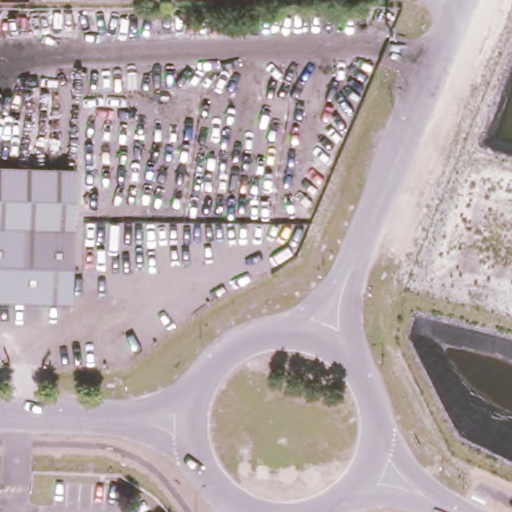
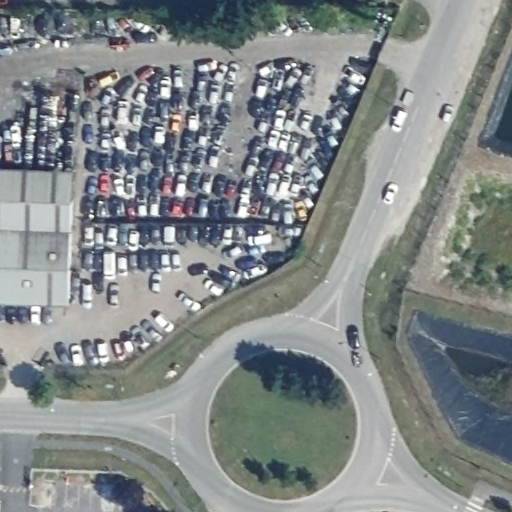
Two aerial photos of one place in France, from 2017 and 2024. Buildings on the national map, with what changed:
unchanged [(70,229),(0,225),(0,165),(72,169),(70,229)]
unchanged [(0,225),(70,229),(67,303),(0,300),(0,225)]

